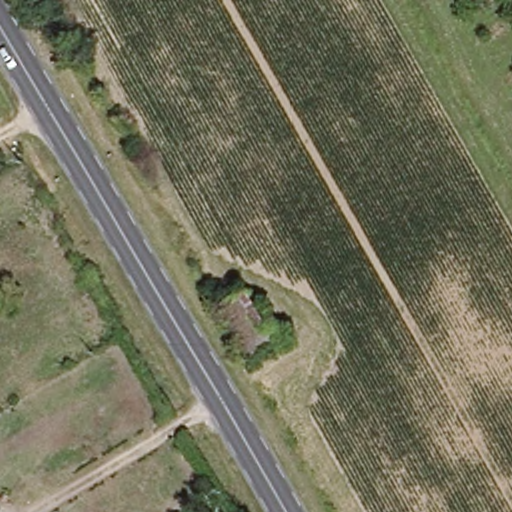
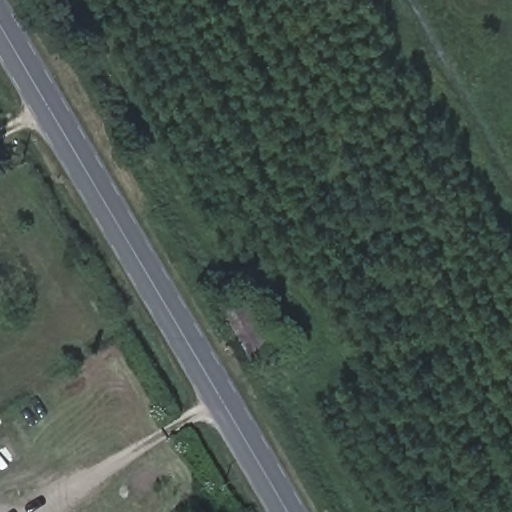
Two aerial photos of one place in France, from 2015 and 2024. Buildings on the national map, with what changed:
unchanged [(274,317),(284,330),(250,355),(220,302),(244,287),(267,322),(274,317)]

